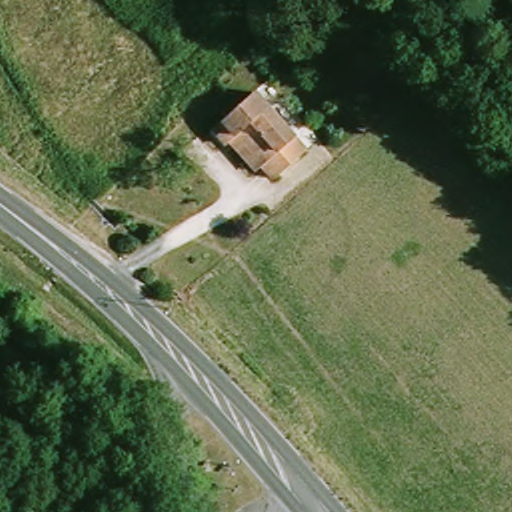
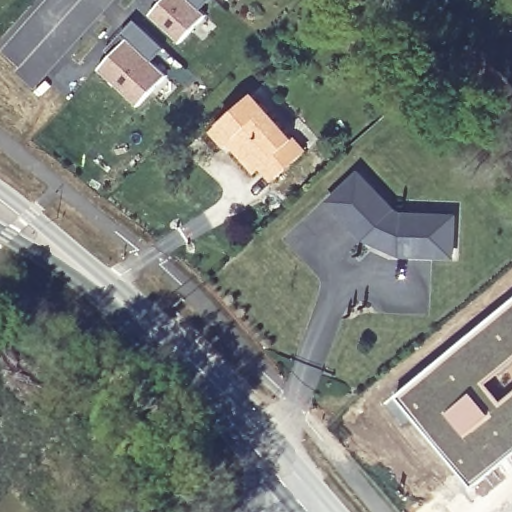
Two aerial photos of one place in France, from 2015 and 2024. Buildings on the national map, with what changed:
new [(161,0),(208,0),(201,8),(207,14),(181,43),(152,14),(163,1),(161,0)]
new [(114,55),(108,49),(136,19),(165,46),(153,60),(167,74),(140,104),(101,69),(114,55)]
unchanged [(230,141),(226,144),(213,129),(255,93),(306,151),(273,179),(262,166),(257,171),(230,141)]
new [(396,207),(406,212),(456,214),(455,259),(404,257),(365,241),(326,200),(359,167),(396,207)]
new [(512,297),(512,360),(491,381),(504,397),(512,390),(512,456),(473,486),(397,393),(512,297)]
new [(512,360),(512,390),(504,397),(491,381),(512,360)]

